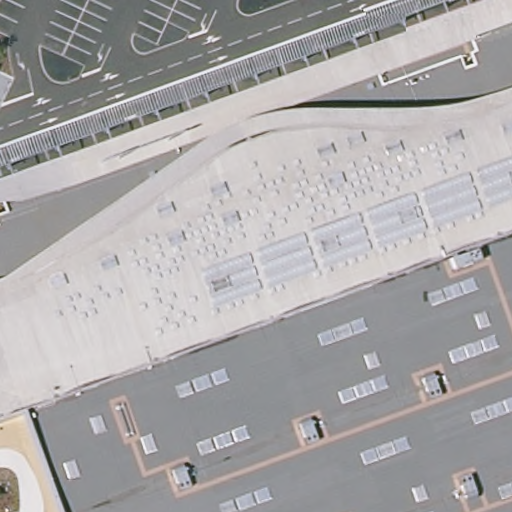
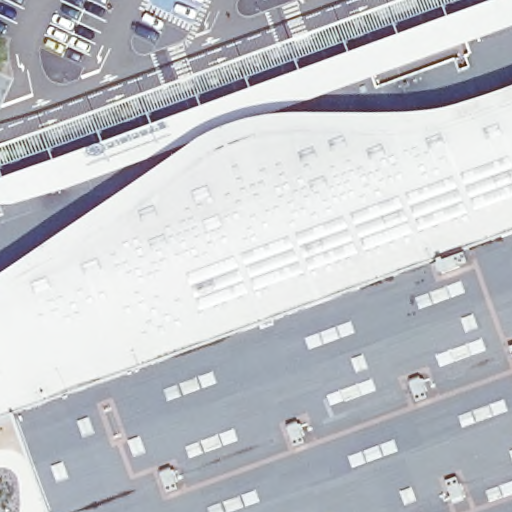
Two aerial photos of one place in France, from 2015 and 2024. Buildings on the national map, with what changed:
unchanged [(0,423),(0,205),(512,22),(512,512),(58,512),(23,414),(0,423)]

